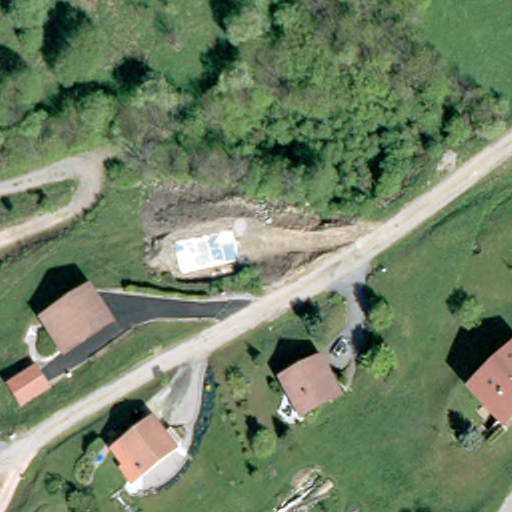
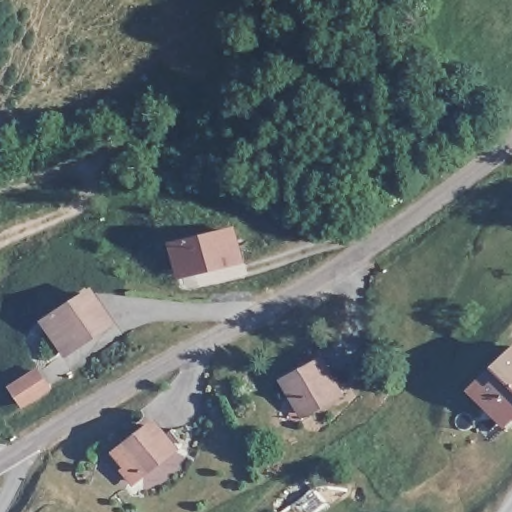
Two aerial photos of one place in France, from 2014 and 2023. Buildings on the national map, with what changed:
new [(245,262),(177,278),(169,240),(237,225),(245,262)]
unchanged [(54,339),(44,326),(90,295),(110,323),(80,345),(65,355),(54,339)]
unchanged [(497,422),(469,390),(512,351),(512,409),(497,422)]
unchanged [(337,397),(302,415),(286,383),(321,365),(337,397)]
new [(36,374),(47,390),(22,407),(11,390),(36,374)]
unchanged [(171,452),(142,471),(125,448),(154,428),(171,452)]

